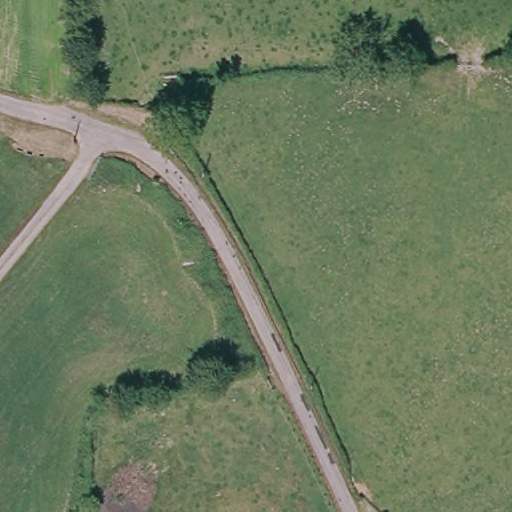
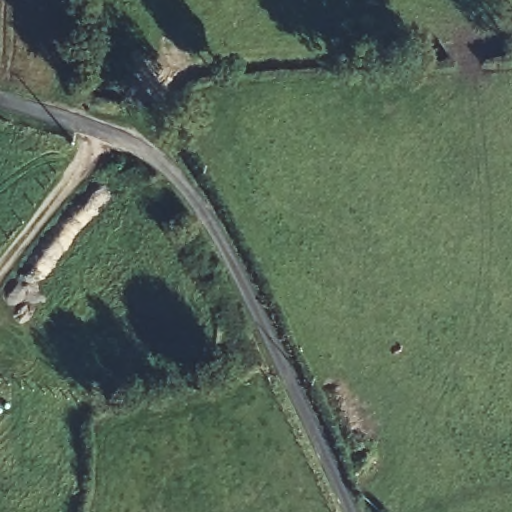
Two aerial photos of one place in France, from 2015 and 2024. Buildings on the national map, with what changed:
[]

